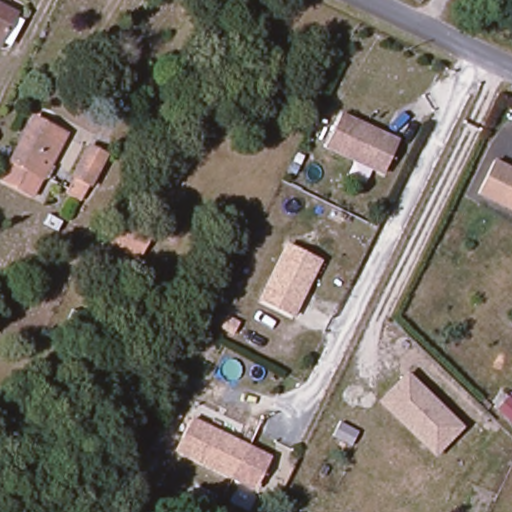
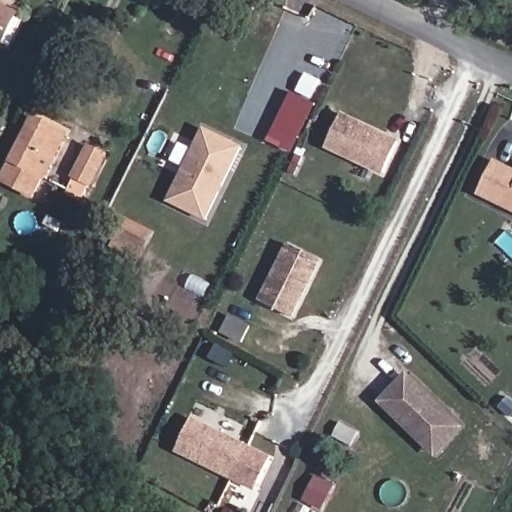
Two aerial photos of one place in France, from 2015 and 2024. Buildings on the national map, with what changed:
unchanged [(10,24),(0,46),(0,18),(10,24)]
new [(315,102),(292,156),(264,144),(288,91),(315,102)]
unchanged [(395,150),(377,182),(322,151),(338,120),(395,150)]
new [(165,205),(203,126),(244,146),(206,223),(165,205)]
unchanged [(34,189),(3,173),(21,140),(25,131),(42,141),(56,147),(34,189)]
unchanged [(92,194),(86,192),(76,207),(61,198),(85,151),(107,164),(92,194)]
unchanged [(491,164),(512,173),(512,211),(477,195),(491,164)]
unchanged [(151,243),(140,262),(115,248),(126,229),(151,243)]
unchanged [(316,267),(286,325),(255,310),(285,252),(316,267)]
unchanged [(439,459),(429,448),(424,444),(388,407),(414,382),(441,410),(454,423),(465,434),(439,459)]
unchanged [(191,420),(270,460),(253,492),(175,451),(191,420)]

